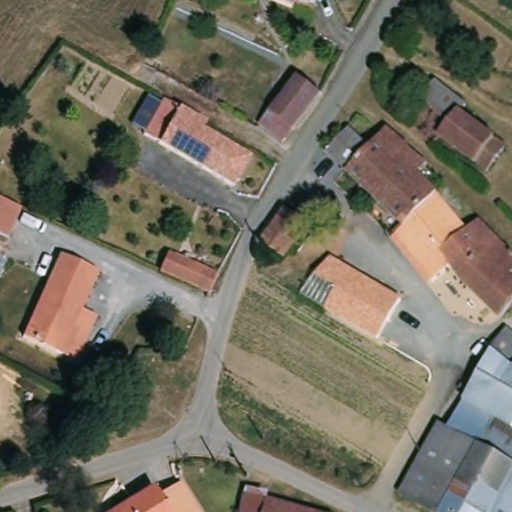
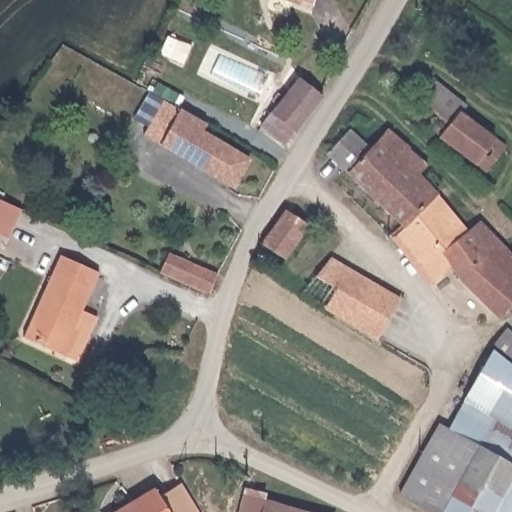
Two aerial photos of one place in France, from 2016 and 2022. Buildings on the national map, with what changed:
unchanged [(315,0),(313,5),(300,0),(315,0)]
unchanged [(261,128),(271,115),(300,79),(324,95),(294,131),(284,144),(261,128)]
unchanged [(488,172),(441,140),(432,149),(405,120),(436,85),(457,99),(467,105),(460,114),(507,147),(488,172)]
unchanged [(208,126),(204,133),(249,160),(233,188),(146,136),(165,102),(208,126)]
unchanged [(409,143),(419,151),(420,151),(427,156),(429,159),(418,170),(437,192),(434,195),(431,197),(430,199),(427,201),(426,203),(423,205),(423,206),(421,209),(420,209),(417,212),(415,214),(410,219),(407,222),(406,221),(403,219),(396,212),(386,203),(385,202),(380,197),(375,192),(372,190),(369,187),(368,186),(362,181),(359,178),(356,175),(355,175),(350,170),(347,166),(345,165),(341,161),(338,159),(335,155),(332,153),(332,152),(331,152),(328,150),(334,144),(342,135),(351,125),(352,126),(353,128),(354,129),(355,130),(358,133),(360,135),(361,136),(365,140),(368,144),(370,145),(371,145),(373,142),(374,141),(377,137),(381,134),(382,131),(383,131),(387,127),(388,126),(390,127),(394,130),(397,134),(399,135),(401,136),(408,142),(409,142),(409,143)]
unchanged [(511,272),(512,273),(512,301),(501,315),(499,312),(490,303),(489,302),(454,266),(452,264),(451,265),(450,265),(448,267),(447,268),(436,278),(434,279),(433,277),(408,250),(404,245),(399,239),(398,238),(395,235),(394,235),(396,232),(397,231),(403,225),(405,224),(406,223),(407,222),(410,219),(415,214),(417,212),(420,209),(421,209),(423,206),(423,205),(426,203),(427,201),(430,199),(431,197),(434,195),(437,192),(467,227),(480,215),(481,215),(483,219),(487,222),(489,225),(490,225),(492,228),(494,230),(497,232),(500,235),(512,247),(512,272),(511,272)]
unchanged [(9,240),(0,236),(0,199),(23,209),(9,240)]
unchanged [(306,229),(293,248),(285,258),(261,244),(285,211),(289,214),(291,215),(297,218),(309,225),(306,229)]
unchanged [(161,272),(169,255),(217,273),(209,293),(161,272)]
unchanged [(68,358),(57,353),(25,338),(62,257),(100,273),(74,330),(80,332),(68,358)]
unchanged [(325,281),(316,275),(331,257),(334,259),(338,261),(401,298),(400,300),(398,304),(394,312),(392,315),(392,316),(390,320),(325,281)]
unchanged [(435,508),(414,496),(412,495),(413,492),(416,488),(417,485),(418,485),(420,480),(425,472),(441,443),(445,435),(447,432),(447,431),(449,428),(449,427),(450,425),(460,430),(496,368),(502,356),(503,355),(501,353),(499,351),(500,350),(507,342),(510,339),(512,337),(512,512),(442,512),(435,508)]
unchanged [(311,512),(246,512),(247,508),(251,491),(252,488),(254,489),(263,491),(271,493),(270,496),(269,501),(305,510),(311,512)]
unchanged [(155,490),(168,512),(122,512),(155,490)]

